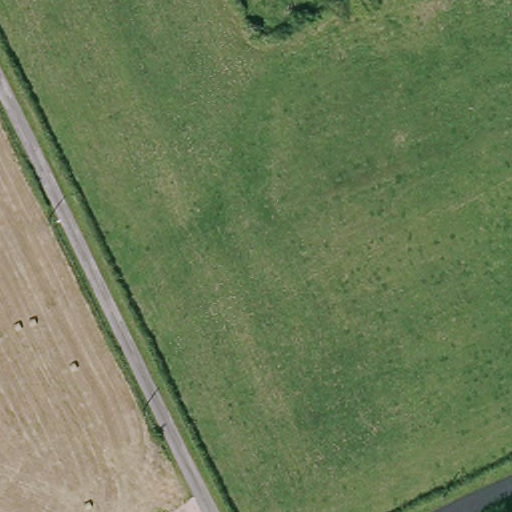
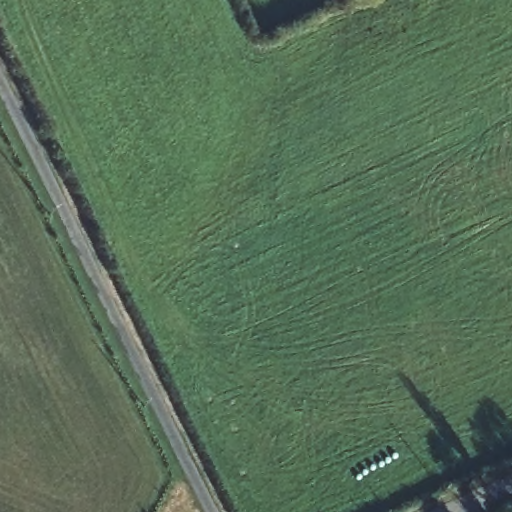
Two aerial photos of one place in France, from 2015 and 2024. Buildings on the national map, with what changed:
[]

